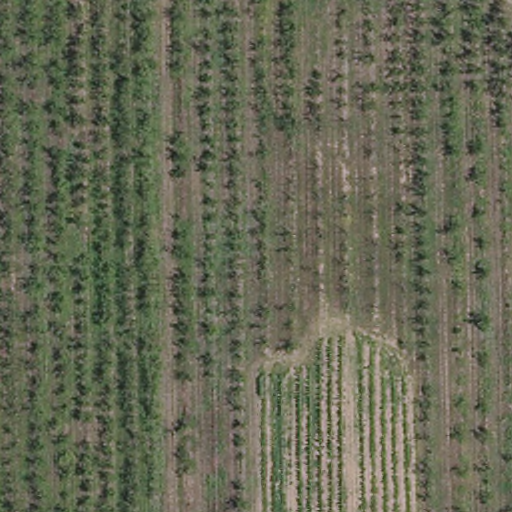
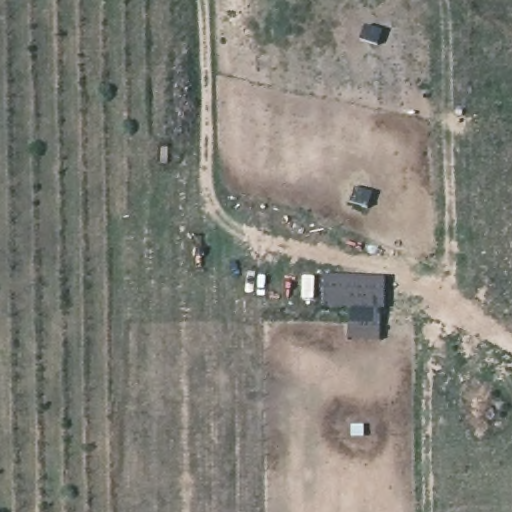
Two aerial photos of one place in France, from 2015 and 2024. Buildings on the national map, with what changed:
new [(323,308),(326,275),(385,280),(381,342),(349,340),(350,310),(323,308)]

